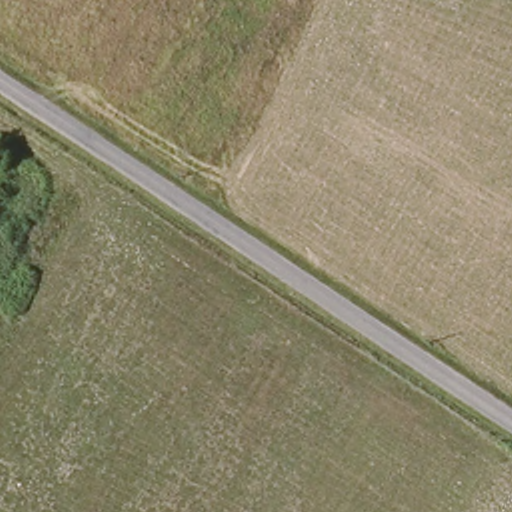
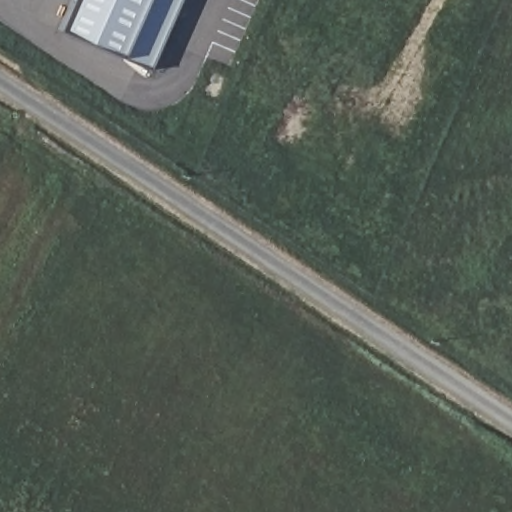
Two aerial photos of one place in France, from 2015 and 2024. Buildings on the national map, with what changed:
new [(151,70),(60,30),(73,0),(181,0),(151,70)]
new [(321,111),(351,128),(344,141),(333,135),(322,153),(341,164),(335,175),(328,171),(325,176),(298,160),(302,152),(303,142),(321,111)]

